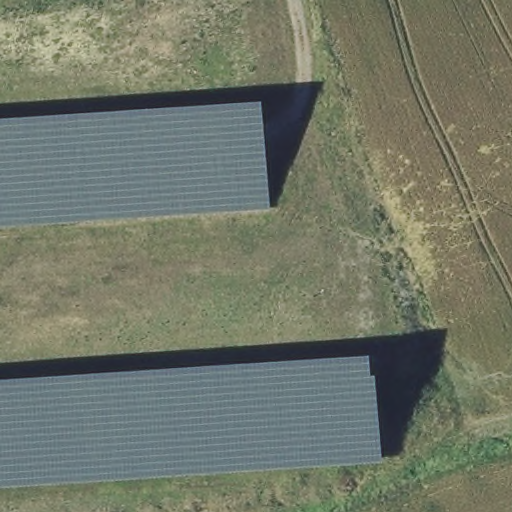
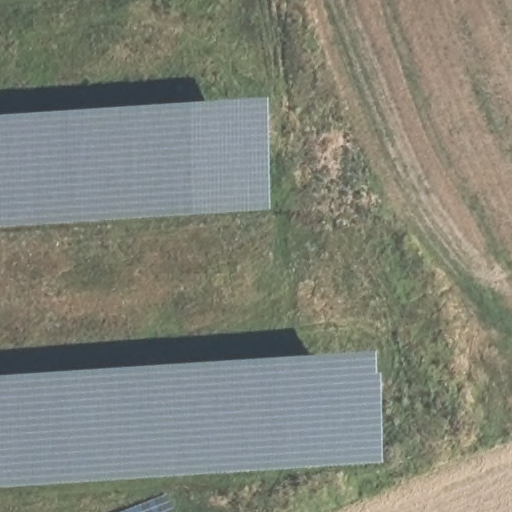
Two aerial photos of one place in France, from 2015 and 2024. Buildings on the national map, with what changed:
unchanged [(269,207),(0,224),(0,118),(264,101),(269,207)]
unchanged [(377,461),(0,486),(0,380),(374,355),(377,461)]

